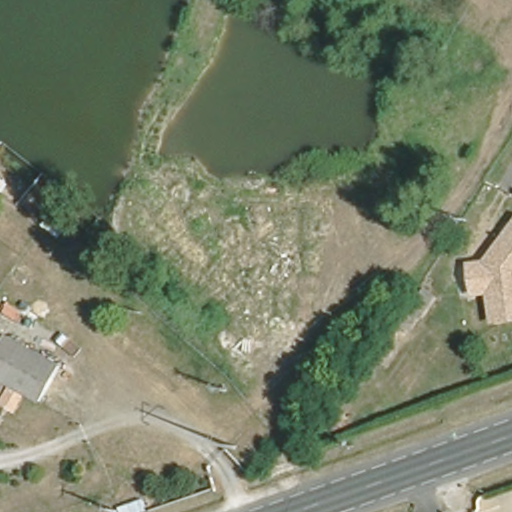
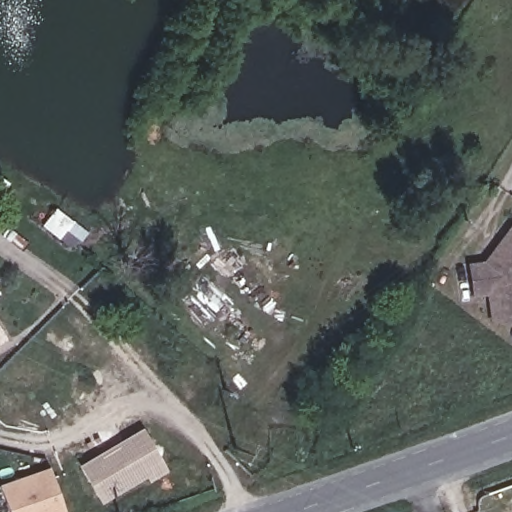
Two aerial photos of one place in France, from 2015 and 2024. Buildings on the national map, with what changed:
unchanged [(491,285),(474,288),(470,261),(486,259),(499,241),(512,222),(512,313),(497,316),(491,285)]
new [(0,343),(0,329),(6,338),(0,343)]
demolished [(0,374),(0,355),(11,334),(64,363),(45,399),(0,374)]
new [(142,428),(168,472),(149,482),(146,477),(102,504),(80,465),(142,428)]
new [(49,467),(64,512),(8,512),(0,490),(0,484),(49,467)]

